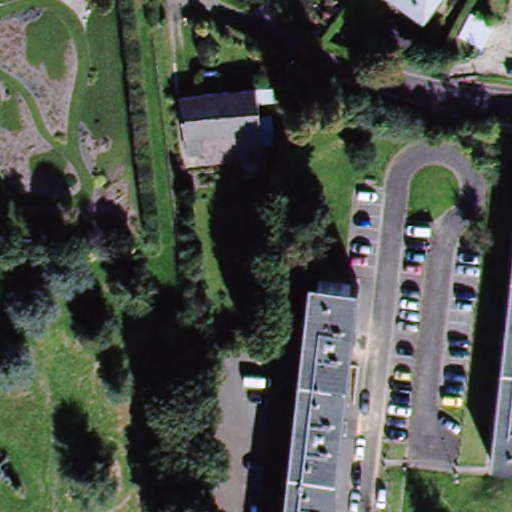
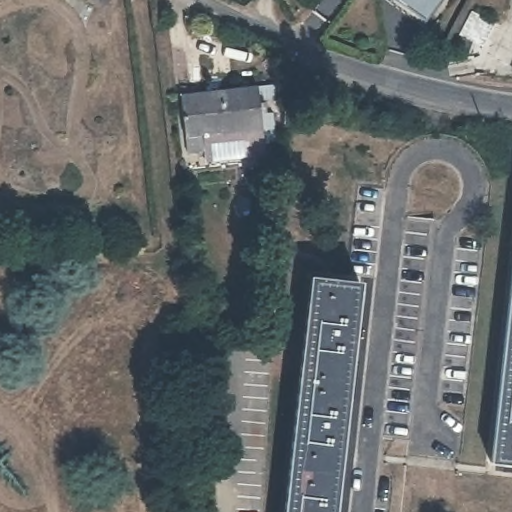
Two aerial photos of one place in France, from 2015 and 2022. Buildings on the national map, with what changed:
unchanged [(399,0),(438,0),(426,19),(399,0)]
unchanged [(458,33),(468,11),(494,22),(484,44),(458,33)]
unchanged [(250,159),(215,162),(202,164),(201,152),(184,155),(182,139),(181,125),(177,96),(252,90),(268,88),(270,101),(259,102),(255,103),(256,117),(267,116),(270,142),(258,144),(260,158),(250,159)]
unchanged [(337,512),(287,512),(312,280),(362,285),(337,512)]
unchanged [(512,298),(512,464),(495,462),(512,298)]

